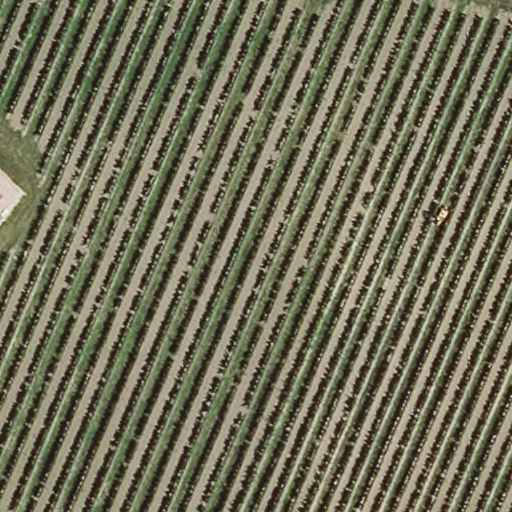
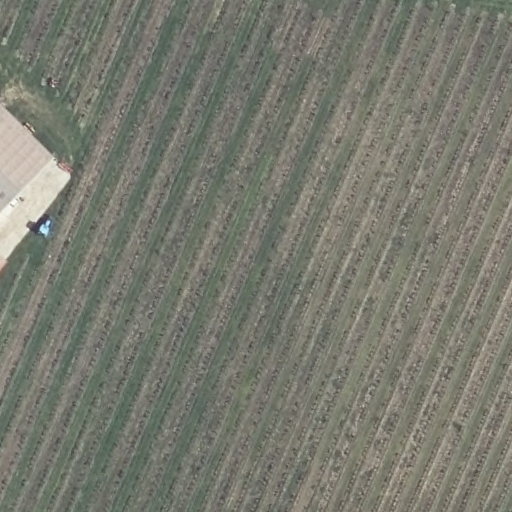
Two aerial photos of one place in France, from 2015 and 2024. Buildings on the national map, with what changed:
new [(52,159),(0,211),(0,107),(52,159)]
demolished [(20,193),(0,213),(0,172),(20,193)]

